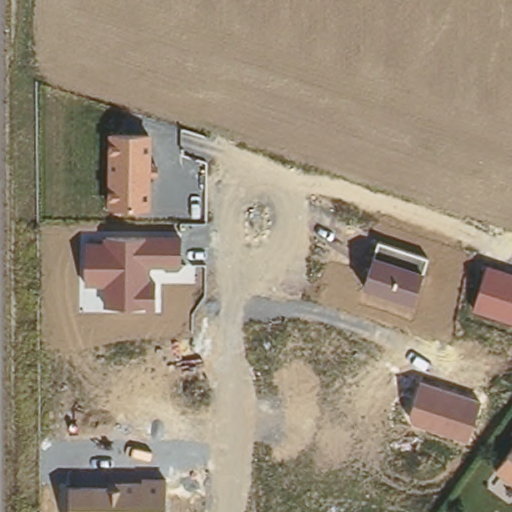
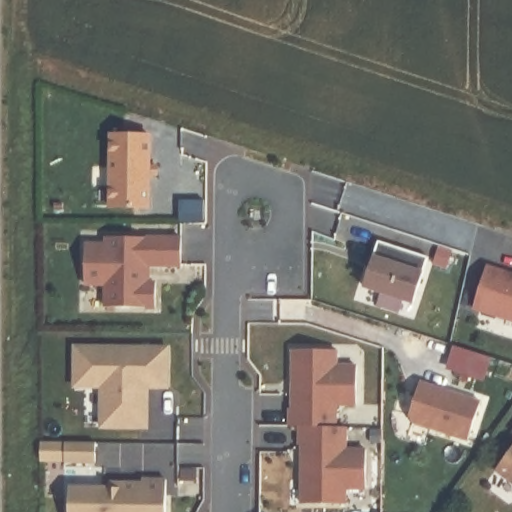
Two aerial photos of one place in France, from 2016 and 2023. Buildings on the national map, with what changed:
unchanged [(152,134),(151,210),(106,210),(107,134),(152,134)]
new [(178,198),(203,199),(202,219),(177,218),(178,198)]
unchanged [(181,267),(151,267),(150,280),(157,280),(157,310),(142,311),(142,308),(102,308),(102,286),(84,287),(84,239),(104,239),(105,235),(182,235),(181,267)]
unchanged [(413,303),(362,287),(379,242),(430,257),(413,303)]
unchanged [(472,310),(487,262),(512,270),(512,321),(472,310)]
new [(452,342),(476,350),(468,374),(452,369),(444,367),(446,362),(452,342)]
new [(140,426),(101,426),(101,382),(74,382),(74,345),(167,346),(167,385),(147,385),(146,426),(140,426)]
new [(288,406),(291,406),(292,347),(335,347),(335,363),(356,364),(355,402),(335,402),(335,425),(298,424),(288,424),(288,406)]
unchanged [(481,397),(467,441),(408,422),(422,379),(481,397)]
new [(298,424),(335,425),(345,425),(344,447),(365,447),(365,486),(344,486),(344,502),(301,501),(301,442),(298,442),(298,424)]
new [(66,444),(97,445),(97,463),(66,463),(40,462),(40,444),(66,444)]
unchanged [(497,466),(512,448),(512,476),(497,466)]
unchanged [(166,512),(69,512),(69,486),(110,486),(110,479),(144,478),(144,477),(166,477),(166,512)]

